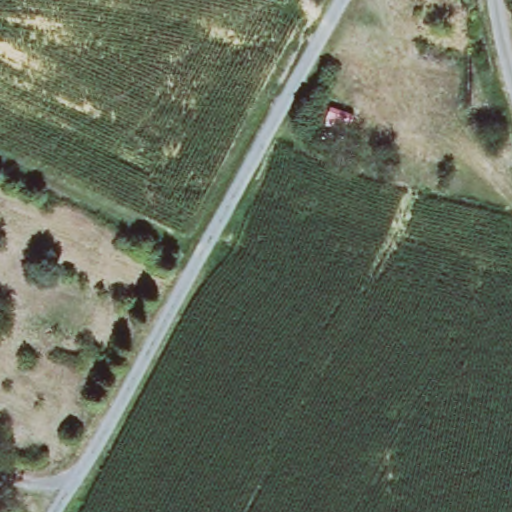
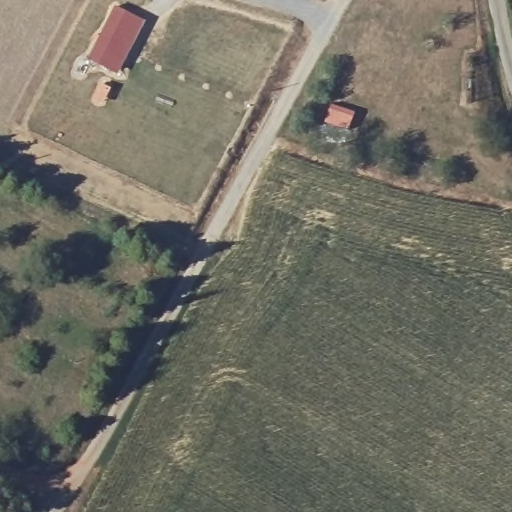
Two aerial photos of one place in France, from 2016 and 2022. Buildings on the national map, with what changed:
new [(117,75),(87,60),(115,6),(145,21),(117,75)]
new [(368,126),(344,121),(347,108),(371,114),(368,126)]

